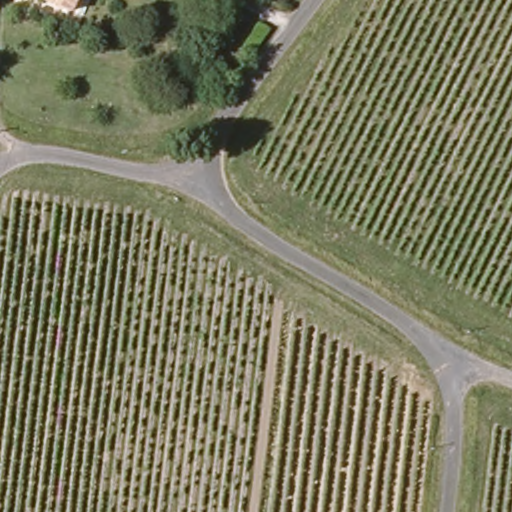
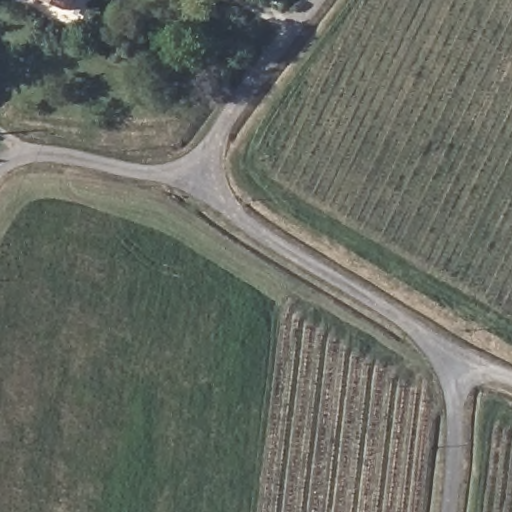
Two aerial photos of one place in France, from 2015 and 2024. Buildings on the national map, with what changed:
unchanged [(44,0),(77,0),(73,10),(44,0)]

